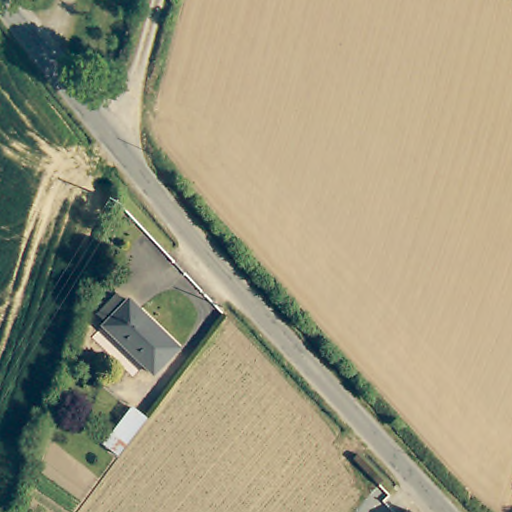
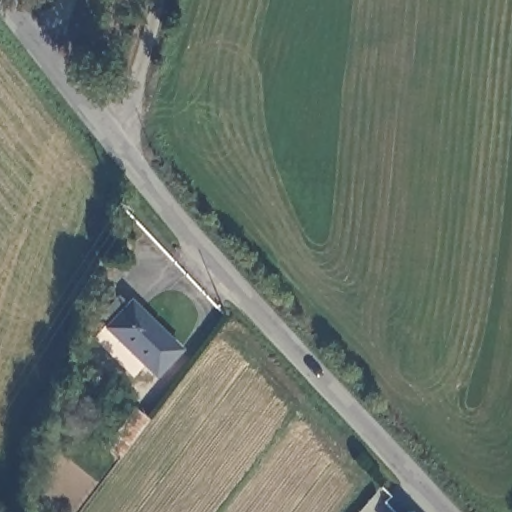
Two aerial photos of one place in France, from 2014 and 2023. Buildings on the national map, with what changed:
unchanged [(131,306),(135,302),(186,353),(186,354),(160,381),(111,331),(114,327),(105,317),(122,298),(131,306)]
unchanged [(147,417),(118,456),(107,448),(135,408),(147,417)]
unchanged [(406,510),(408,512),(403,512),(406,510)]

